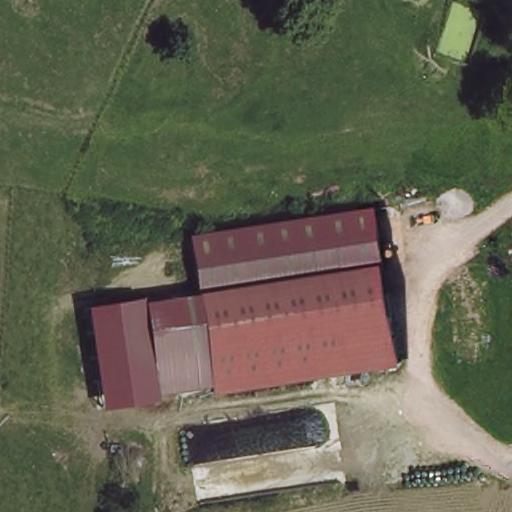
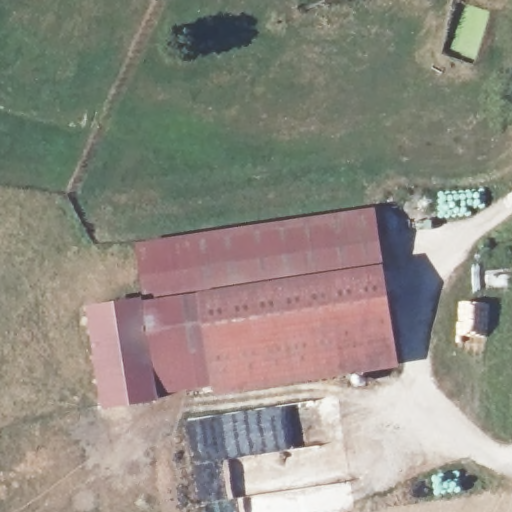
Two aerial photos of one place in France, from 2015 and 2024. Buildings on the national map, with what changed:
unchanged [(197,291),(187,235),(377,207),(384,266),(197,291)]
new [(141,294),(133,245),(187,235),(197,291),(141,294)]
unchanged [(396,363),(215,391),(201,293),(382,267),(396,363)]
unchanged [(215,391),(156,395),(157,400),(103,409),(86,306),(145,296),(145,301),(201,293),(215,391)]

